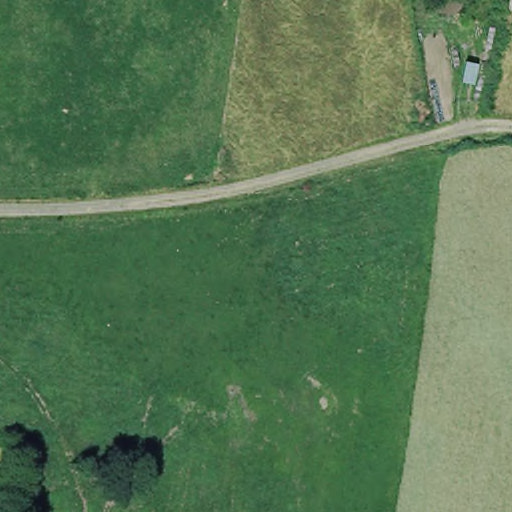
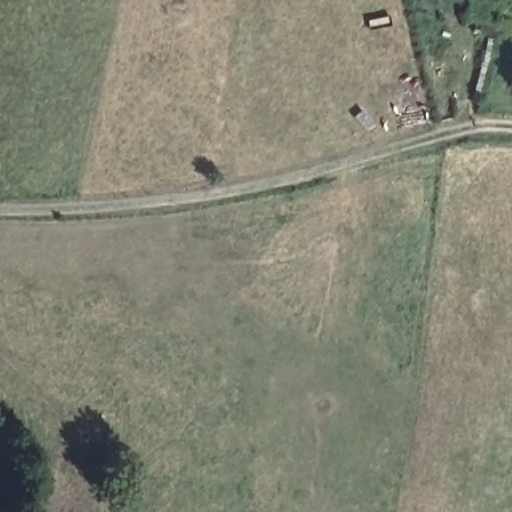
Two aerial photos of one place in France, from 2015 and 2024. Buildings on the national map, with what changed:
unchanged [(467,0),(486,0),(480,24),(463,19),(467,0)]

